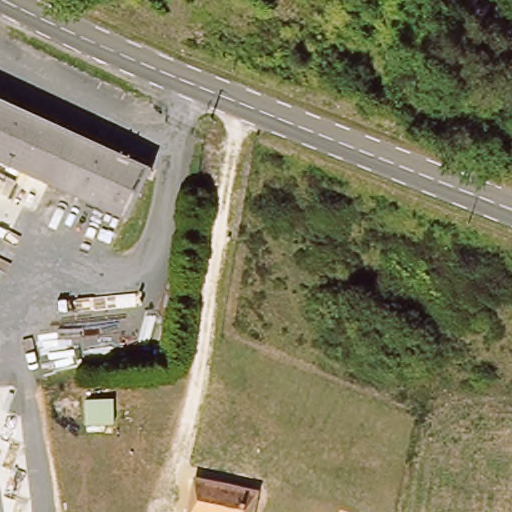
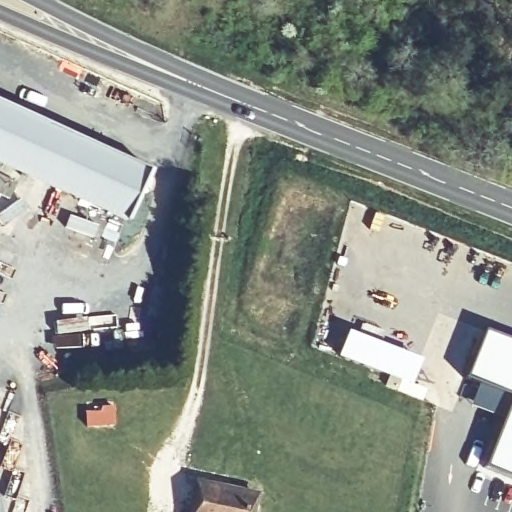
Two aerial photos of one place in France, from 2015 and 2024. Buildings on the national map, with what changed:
unchanged [(142,213),(0,151),(0,97),(159,172),(142,213)]
unchanged [(133,225),(0,166),(0,151),(142,213),(133,225)]
unchanged [(8,200),(0,196),(0,178),(16,186),(8,200)]
new [(421,360),(410,386),(336,358),(346,332),(421,360)]
new [(464,381),(482,335),(512,345),(512,396),(464,381)]
new [(512,397),(512,477),(486,467),(512,397)]
unchanged [(274,499),(271,512),(204,512),(214,479),(274,499)]

